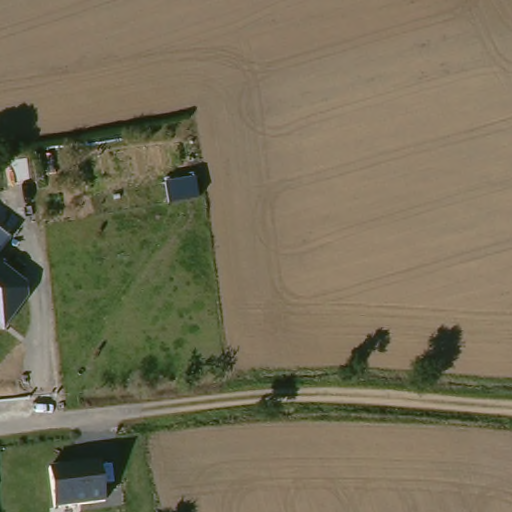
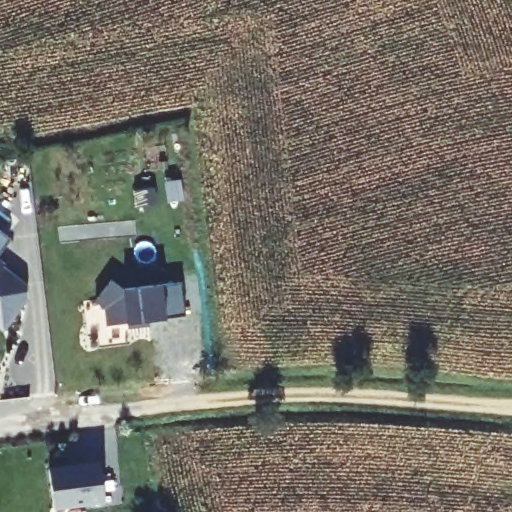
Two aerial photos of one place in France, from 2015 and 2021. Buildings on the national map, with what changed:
unchanged [(0,254),(0,222),(14,233),(0,254)]
unchanged [(7,329),(0,324),(0,254),(40,283),(7,329)]
new [(113,280),(125,289),(182,284),(186,320),(149,324),(150,329),(129,331),(128,326),(107,328),(106,311),(96,304),(113,280)]
unchanged [(105,453),(109,498),(56,504),(53,458),(105,453)]

